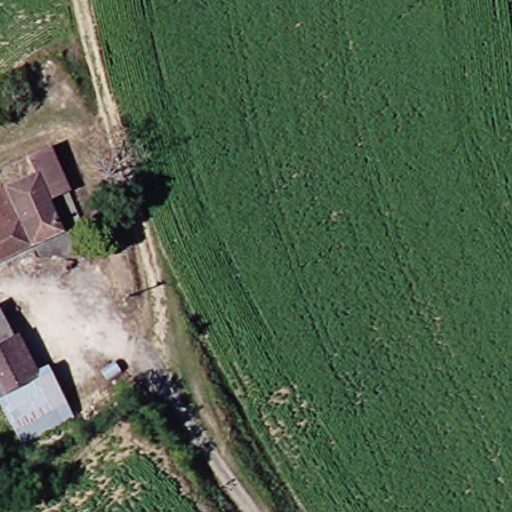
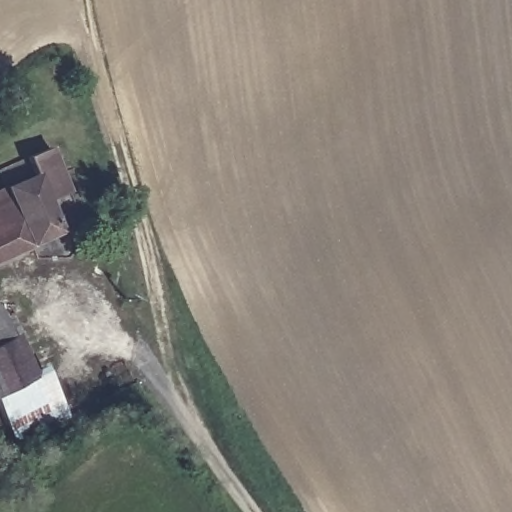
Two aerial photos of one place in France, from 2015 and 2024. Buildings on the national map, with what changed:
unchanged [(35,157),(57,146),(79,192),(60,202),(45,176),(35,157)]
unchanged [(45,176),(60,202),(72,232),(0,270),(0,199),(45,176)]
unchanged [(5,303),(48,376),(59,370),(85,417),(33,444),(9,398),(0,403),(0,307),(5,303)]

